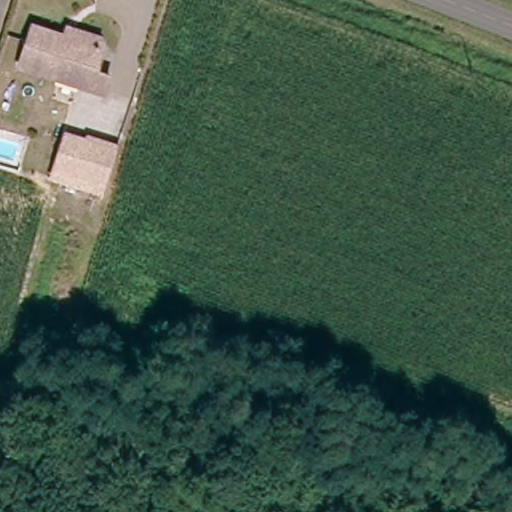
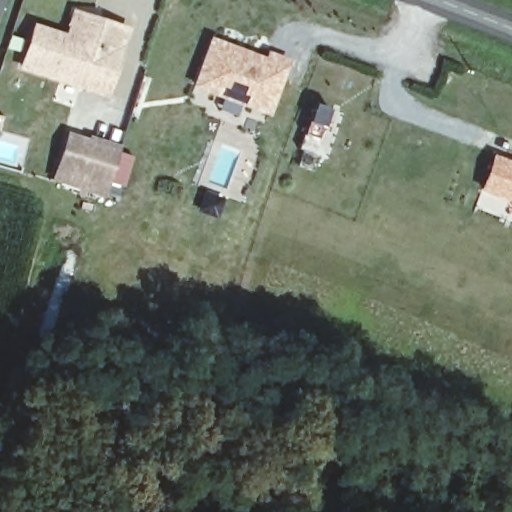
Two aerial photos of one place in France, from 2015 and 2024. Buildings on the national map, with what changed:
unchanged [(21,69),(34,29),(61,38),(65,28),(71,10),(130,28),(109,75),(103,93),(21,69)]
new [(264,56),(266,50),(289,58),(269,115),(190,87),(209,35),(264,56)]
unchanged [(91,134),(116,141),(103,187),(76,180),(51,173),(64,126),(91,134)]
new [(492,152),(512,161),(512,202),(476,189),(492,152)]

